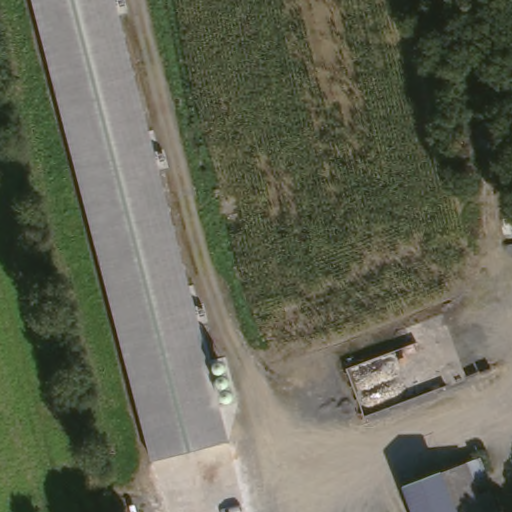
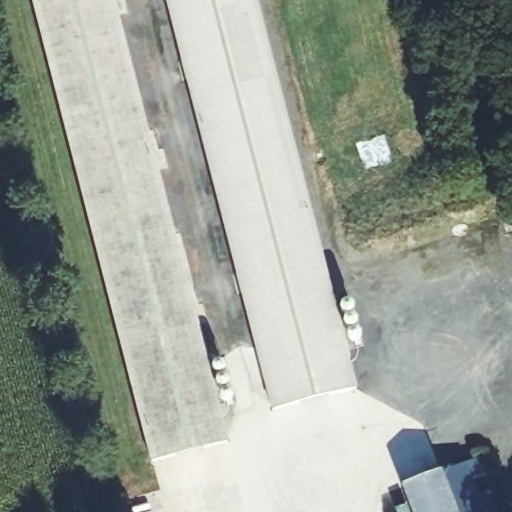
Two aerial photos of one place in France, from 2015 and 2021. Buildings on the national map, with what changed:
unchanged [(228,442),(147,461),(31,0),(114,0),(228,442)]
new [(165,0),(257,0),(357,387),(272,410),(165,0)]
unchanged [(456,473),(482,464),(487,461),(495,458),(502,475),(488,481),(500,512),(407,512),(401,495),(456,473)]

